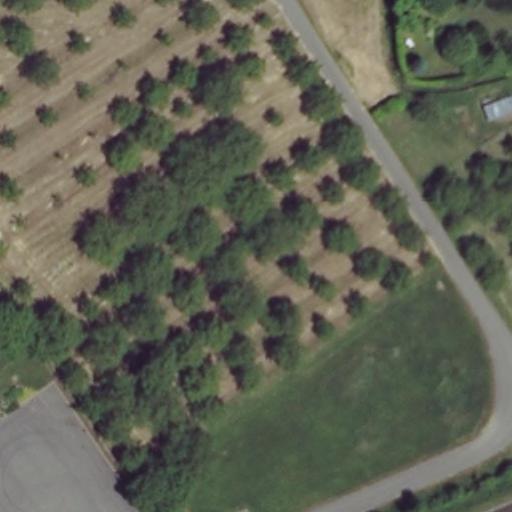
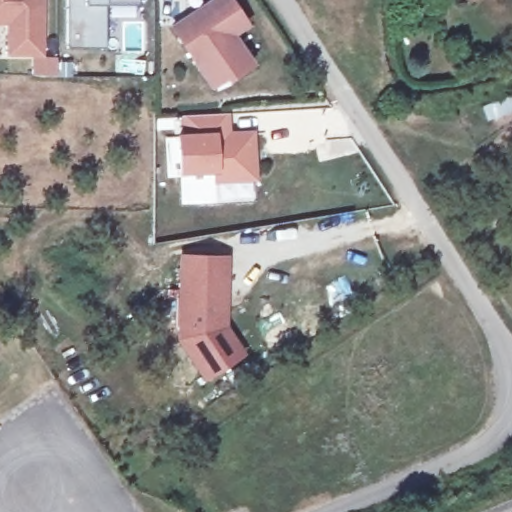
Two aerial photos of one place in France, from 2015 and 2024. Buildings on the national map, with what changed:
new [(41,55),(20,54),(21,23),(0,23),(0,0),(42,0),(41,55)]
new [(142,7),(108,6),(109,50),(69,50),(69,0),(142,0),(142,7)]
new [(207,0),(234,0),(251,26),(237,36),(256,63),(214,91),(169,26),(207,0)]
new [(182,116),(231,113),(232,132),(257,131),(258,182),(214,184),(215,175),(178,176),(177,135),(184,134),(182,116)]
new [(181,335),(183,258),(226,259),(225,328),(243,354),(210,377),(208,379),(181,340),(181,335)]

